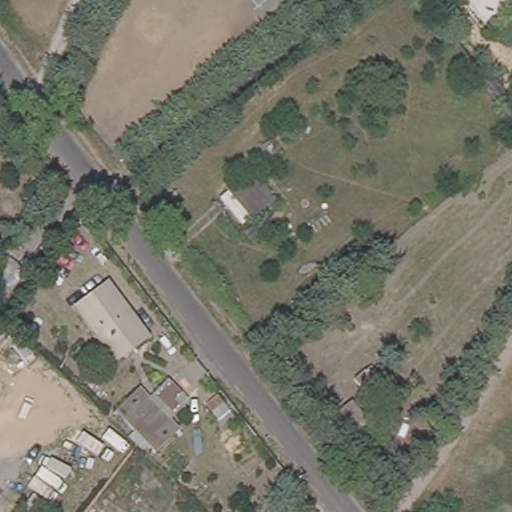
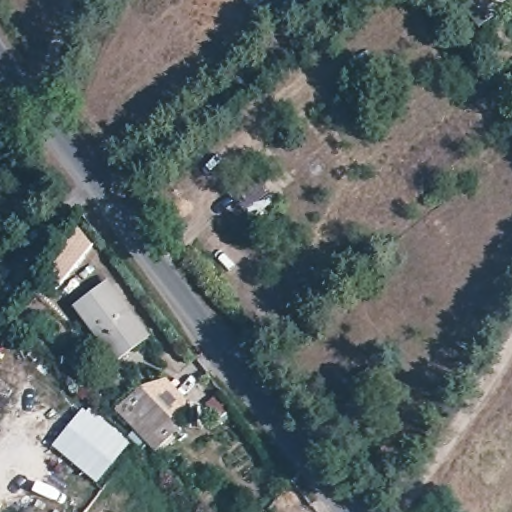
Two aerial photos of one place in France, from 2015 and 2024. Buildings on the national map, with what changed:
unchanged [(252,214),(239,224),(216,197),(229,186),(252,214)]
unchanged [(116,355),(78,303),(109,280),(147,333),(116,355)]
new [(0,408),(0,379),(14,389),(0,408)]
unchanged [(154,448),(117,408),(139,385),(178,426),(154,448)]
new [(131,445),(99,485),(54,448),(86,407),(131,445)]
unchanged [(364,438),(349,419),(363,407),(378,427),(364,438)]

